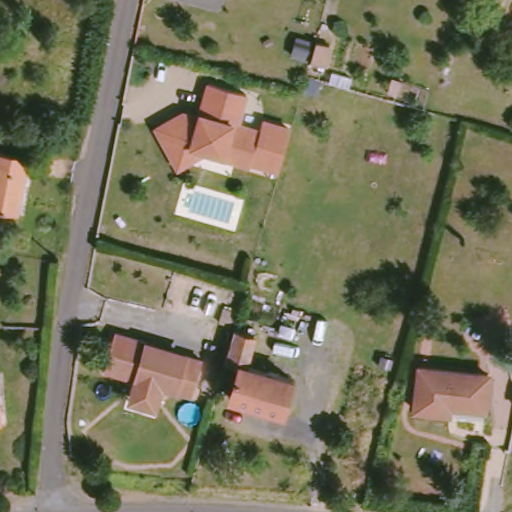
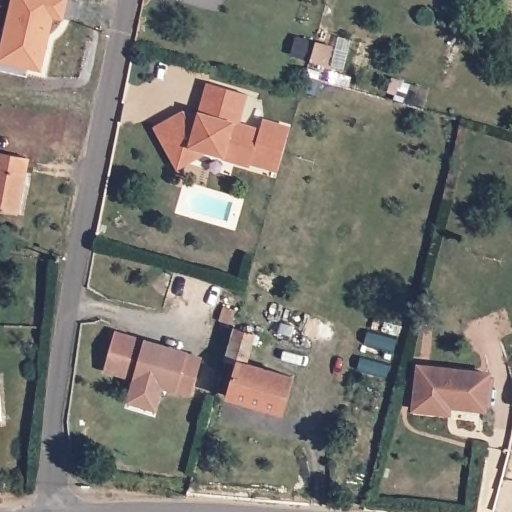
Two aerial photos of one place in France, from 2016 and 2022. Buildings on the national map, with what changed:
new [(12,0),(68,0),(64,20),(54,19),(42,71),(0,62),(0,55),(12,0)]
unchanged [(178,165),(158,125),(163,122),(185,110),(200,115),(210,82),(248,93),(239,123),(261,129),(250,164),(223,156),(224,154),(208,149),(183,162),(178,165)]
new [(291,126),(278,171),(251,163),(261,129),(264,118),(291,126)]
unchanged [(23,159),(13,214),(0,211),(0,155),(23,159)]
unchanged [(284,412),(230,396),(239,365),(226,361),(236,327),(257,334),(248,365),(294,379),(284,412)]
unchanged [(151,338),(151,342),(189,354),(190,351),(207,356),(196,392),(166,383),(164,392),(157,396),(148,397),(141,391),(138,384),(140,376),(109,367),(120,329),(151,338)]
unchanged [(487,401),(451,403),(451,410),(417,412),(414,371),(484,367),(487,401)]

